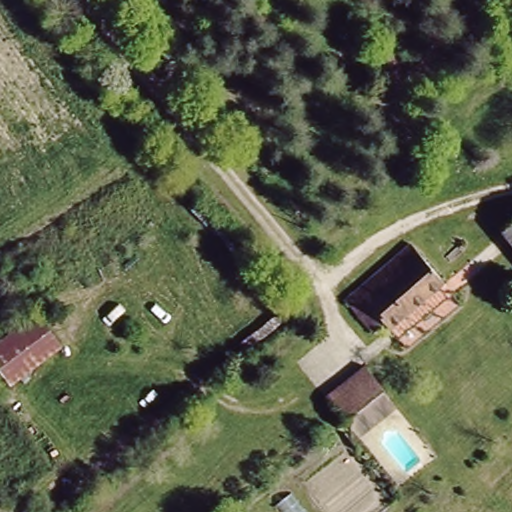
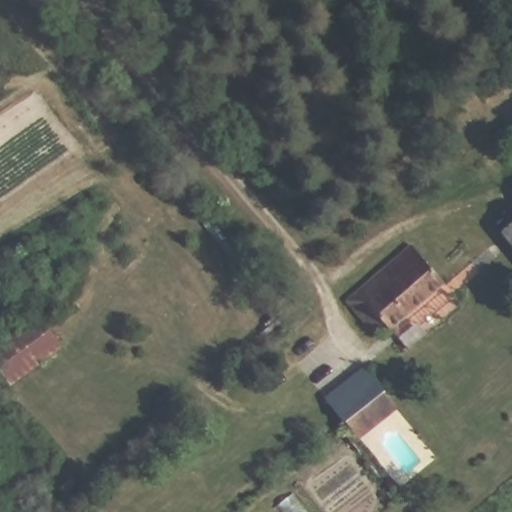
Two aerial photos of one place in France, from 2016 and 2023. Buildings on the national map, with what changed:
unchanged [(506,242),(512,235),(512,248),(506,242)]
unchanged [(446,285),(382,336),(343,300),(408,246),(446,285)]
unchanged [(0,376),(0,339),(35,315),(61,348),(7,385),(0,376)]
unchanged [(382,391),(338,422),(321,399),(365,367),(382,391)]

